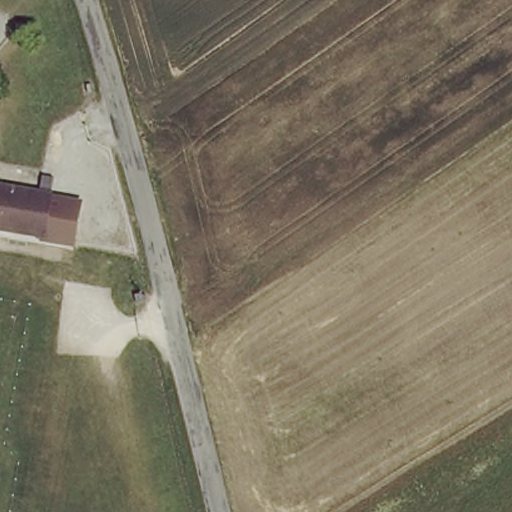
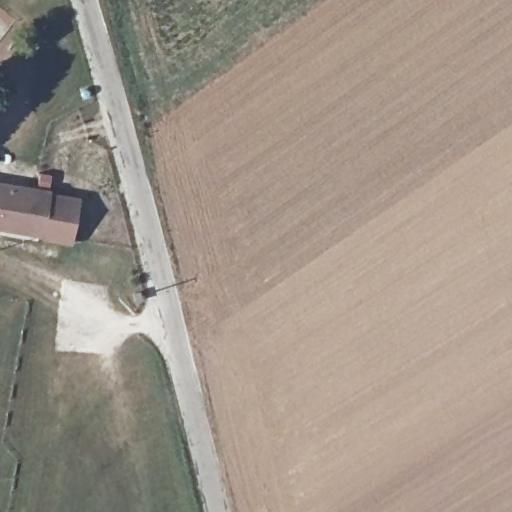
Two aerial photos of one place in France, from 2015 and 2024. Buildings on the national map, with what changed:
unchanged [(50,190),(42,230),(0,223),(0,180),(50,190)]
unchanged [(154,282),(159,294),(150,297),(147,285),(154,282)]

